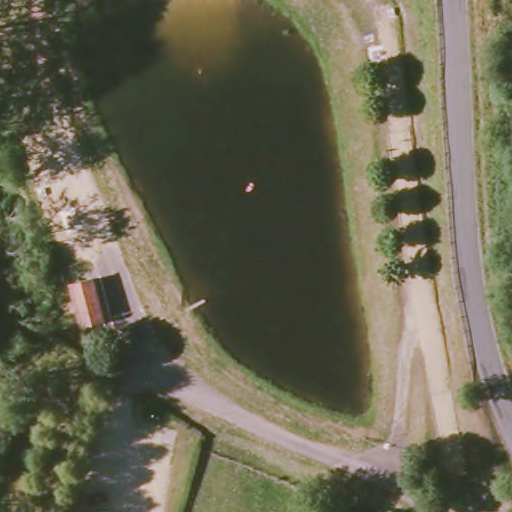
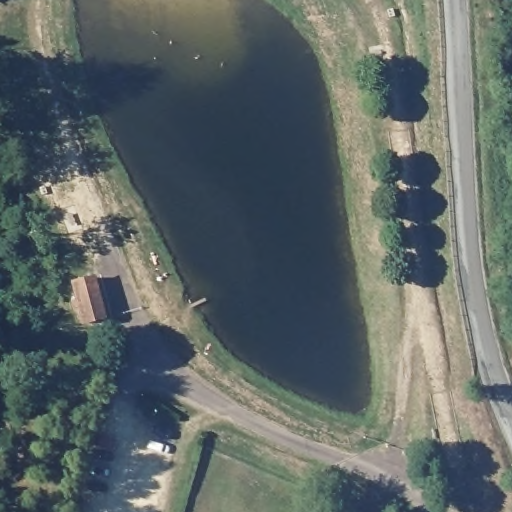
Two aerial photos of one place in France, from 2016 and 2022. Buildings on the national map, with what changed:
unchanged [(76,282),(96,277),(106,313),(87,319),(76,282)]
unchanged [(359,512),(360,511),(362,512),(359,512)]

